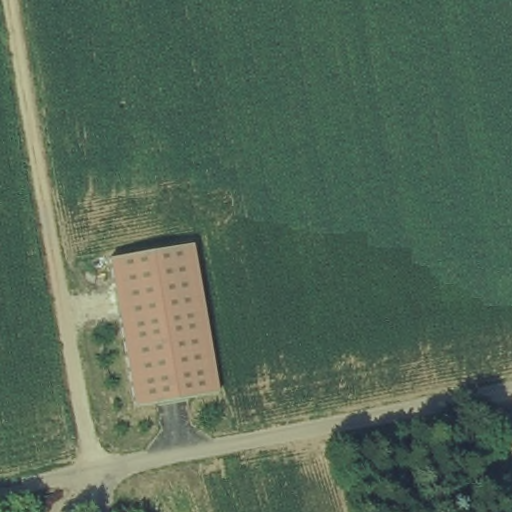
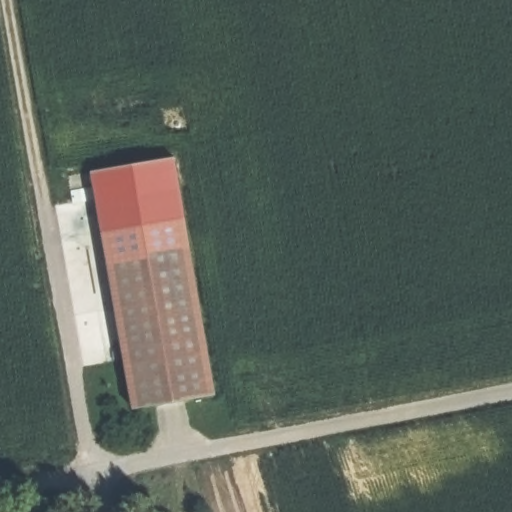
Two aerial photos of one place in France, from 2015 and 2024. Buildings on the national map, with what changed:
new [(92,171),(175,156),(190,244),(182,246),(109,258),(92,171)]
unchanged [(182,246),(190,244),(216,393),(208,394),(134,407),(109,258),(182,246)]

